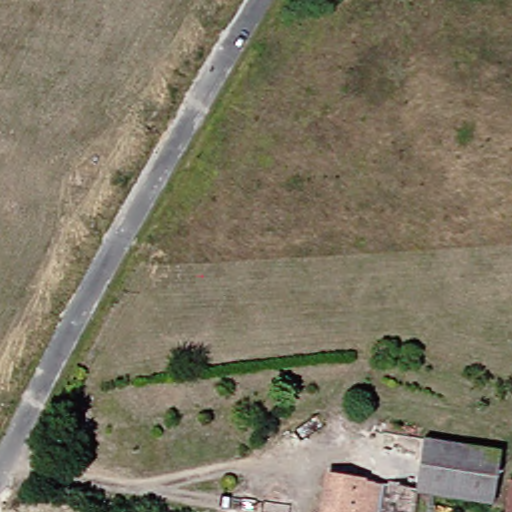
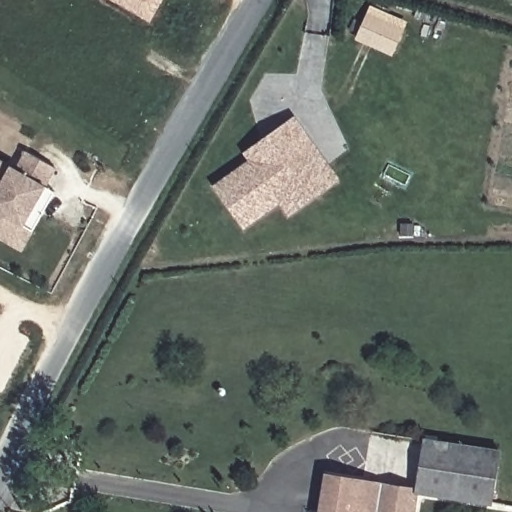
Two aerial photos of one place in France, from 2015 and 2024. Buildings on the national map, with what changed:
new [(164,0),(151,21),(113,0),(164,0)]
new [(369,16),(401,29),(391,52),(359,38),(369,16)]
new [(248,154),(276,134),(295,120),(313,146),(337,178),(331,182),(290,212),(281,199),(246,225),(218,187),(253,161),(248,154)]
new [(0,161),(14,170),(24,151),(54,168),(43,186),(53,191),(40,213),(30,231),(20,250),(0,239),(0,161)]
unchanged [(488,457),(480,507),(406,495),(404,512),(311,512),(316,480),(348,486),(356,436),(488,457)]
unchanged [(507,483),(512,483),(512,512),(502,512),(507,483)]

